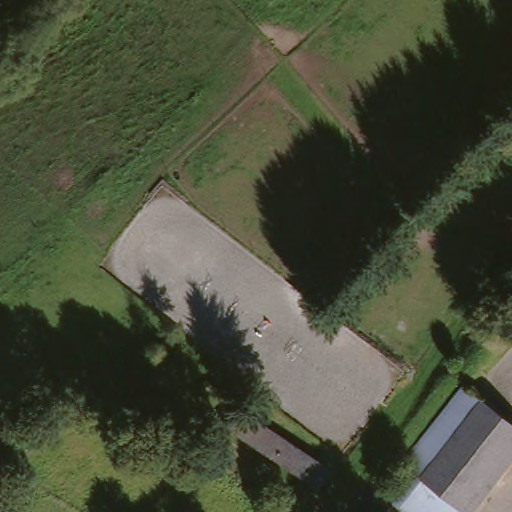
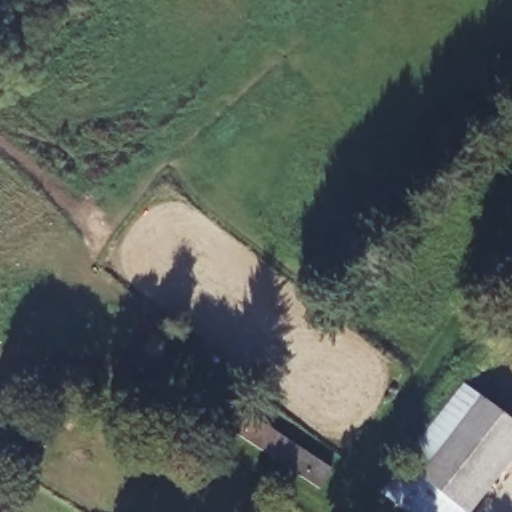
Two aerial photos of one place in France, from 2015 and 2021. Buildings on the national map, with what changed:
unchanged [(460,385),(512,427),(512,461),(472,512),(395,512),(375,496),(460,385)]
unchanged [(327,472),(315,491),(224,426),(235,409),(327,472)]

